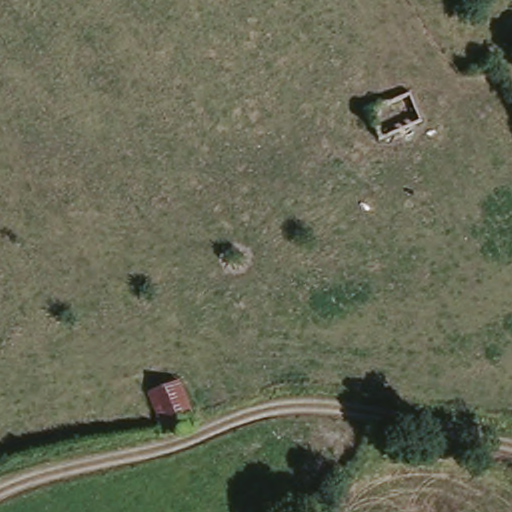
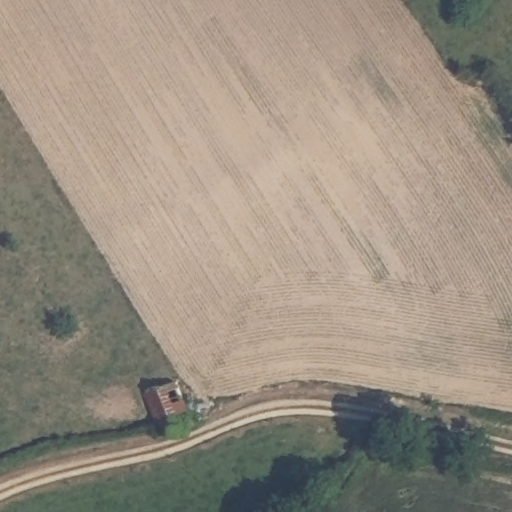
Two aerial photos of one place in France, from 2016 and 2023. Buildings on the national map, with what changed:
unchanged [(418,114),(376,132),(363,106),(405,86),(418,114)]
unchanged [(169,429),(144,396),(149,392),(176,377),(194,420),(169,429)]

